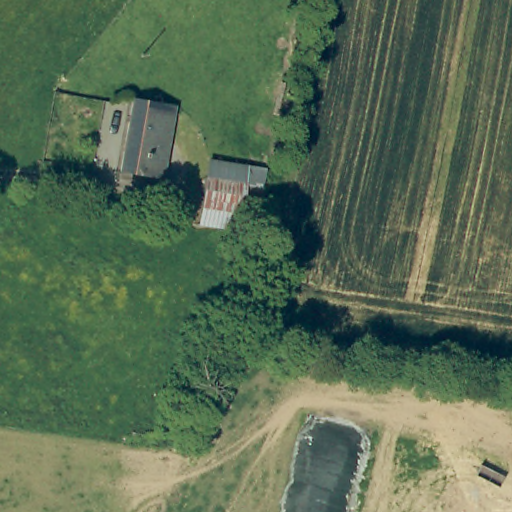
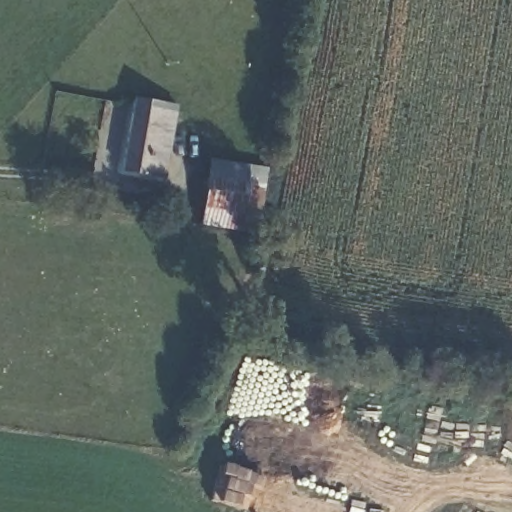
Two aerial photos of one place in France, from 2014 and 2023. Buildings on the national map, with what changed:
unchanged [(170,109),(161,174),(121,168),(130,105),(170,109)]
unchanged [(264,164),(269,166),(263,204),(247,202),(245,192),(206,189),(208,159),(264,164)]

